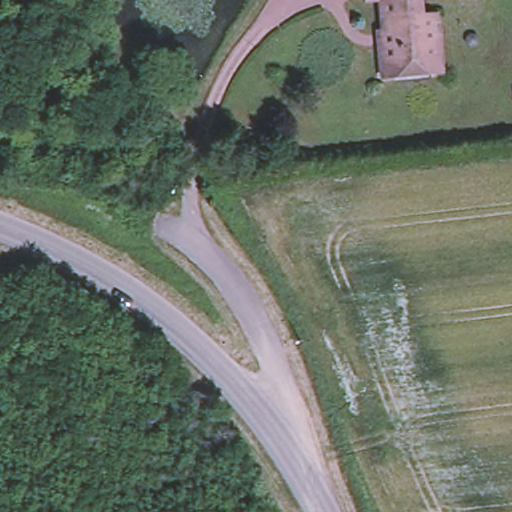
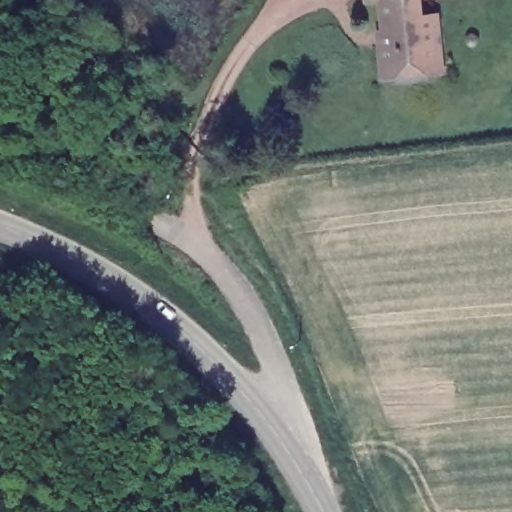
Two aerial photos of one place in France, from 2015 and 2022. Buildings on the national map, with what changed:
unchanged [(384,79),(380,34),(385,34),(382,1),(369,2),(369,0),(422,0),(424,18),(439,16),(445,73),(384,79)]

